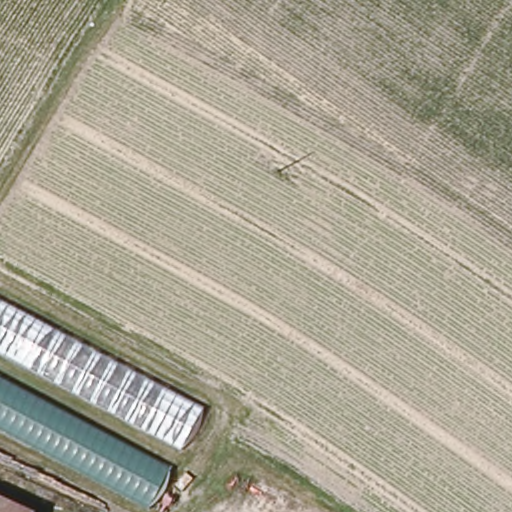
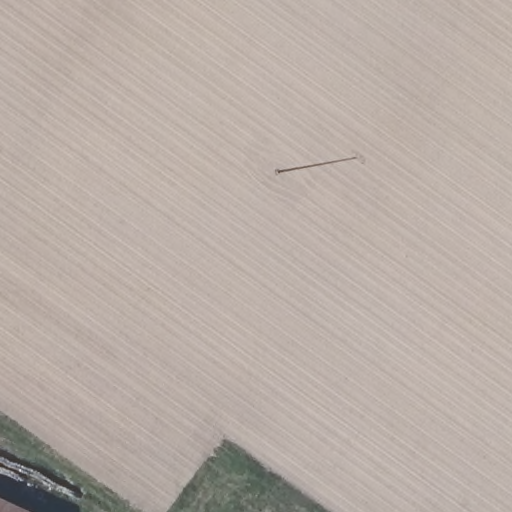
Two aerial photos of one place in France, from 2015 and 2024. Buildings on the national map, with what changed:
demolished [(147,509),(0,429),(0,301),(201,410),(147,509)]
unchanged [(30,512),(0,512),(0,498),(30,512)]

